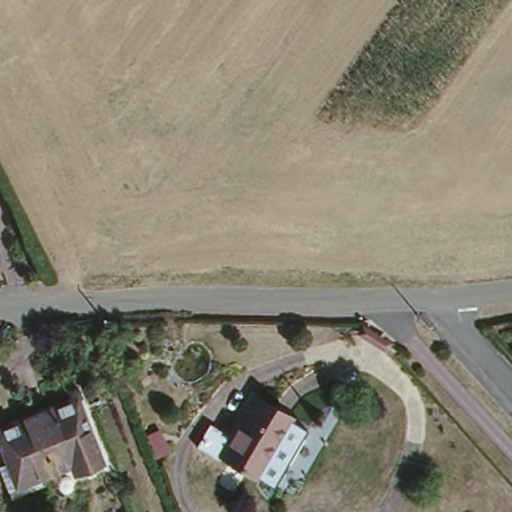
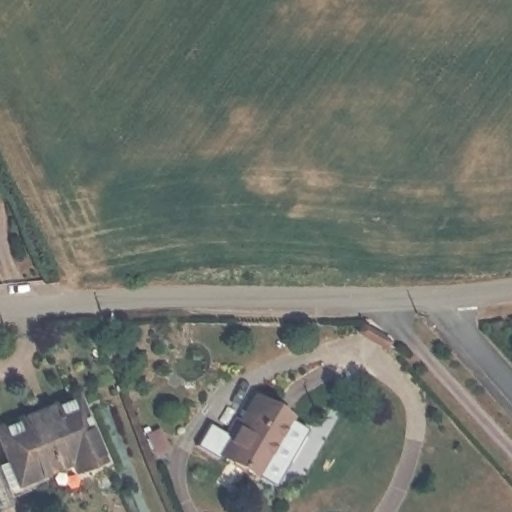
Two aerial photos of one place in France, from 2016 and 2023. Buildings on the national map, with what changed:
unchanged [(225,423),(232,411),(239,416),(253,393),(291,417),(257,470),(220,446),(232,427),(225,423)]
unchanged [(67,467),(17,483),(0,435),(0,427),(74,401),(100,467),(72,477),(67,467)]

